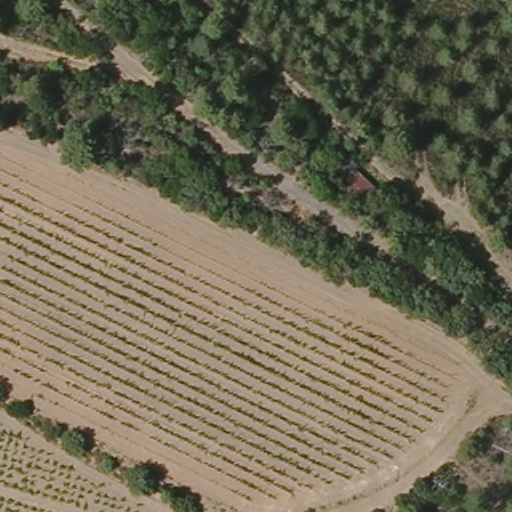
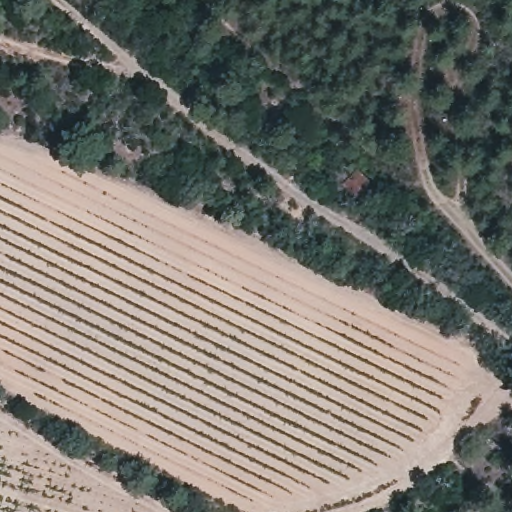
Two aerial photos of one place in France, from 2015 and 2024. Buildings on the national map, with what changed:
unchanged [(361,169),(383,189),(371,205),(346,185),(361,169)]

